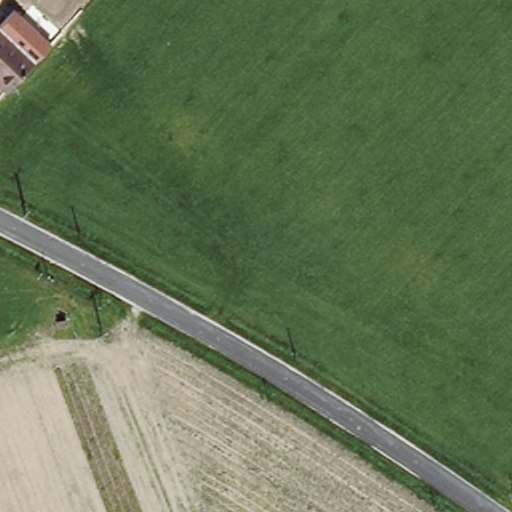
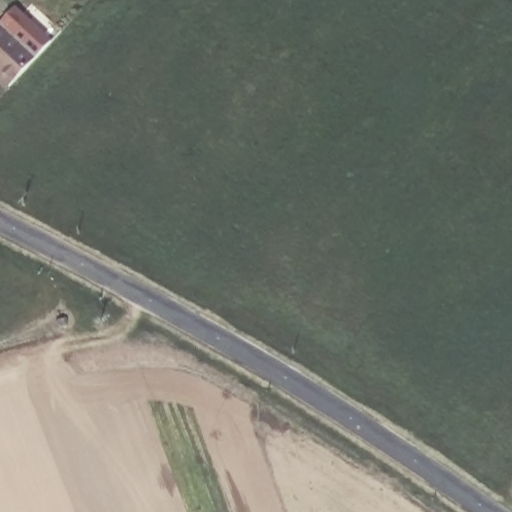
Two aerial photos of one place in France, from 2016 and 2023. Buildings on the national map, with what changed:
unchanged [(0,32),(17,16),(49,42),(10,89),(0,79),(0,32)]

